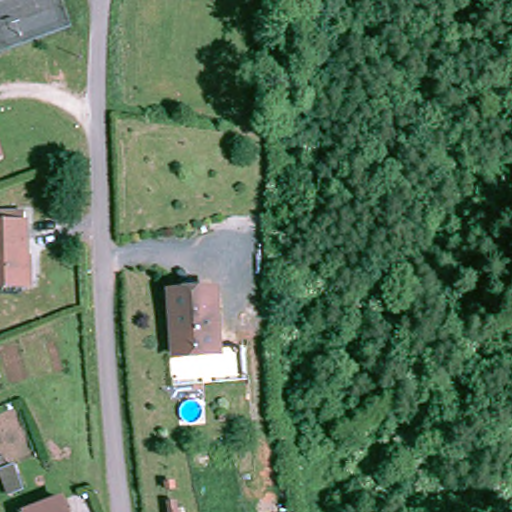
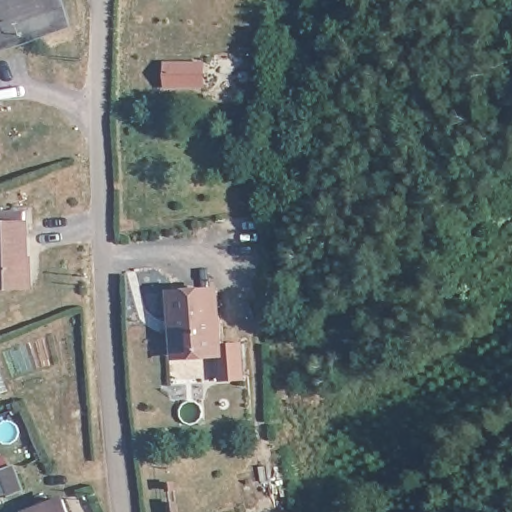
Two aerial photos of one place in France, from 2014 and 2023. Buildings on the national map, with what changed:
new [(165,64),(208,64),(207,88),(165,91),(165,64)]
unchanged [(0,295),(0,219),(27,219),(29,295),(10,295),(0,295)]
unchanged [(180,359),(175,298),(222,296),(225,357),(180,359)]
unchanged [(65,505),(69,512),(46,512),(65,505)]

